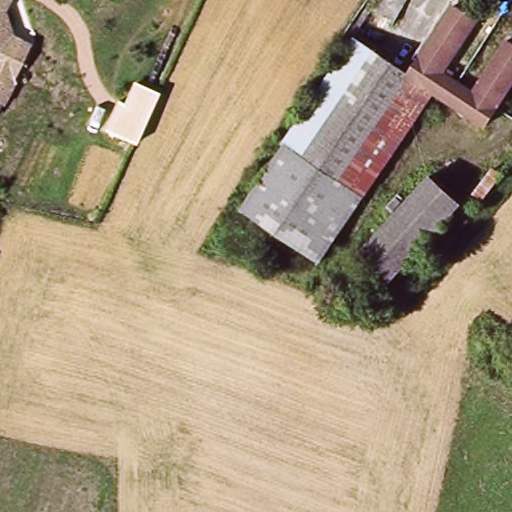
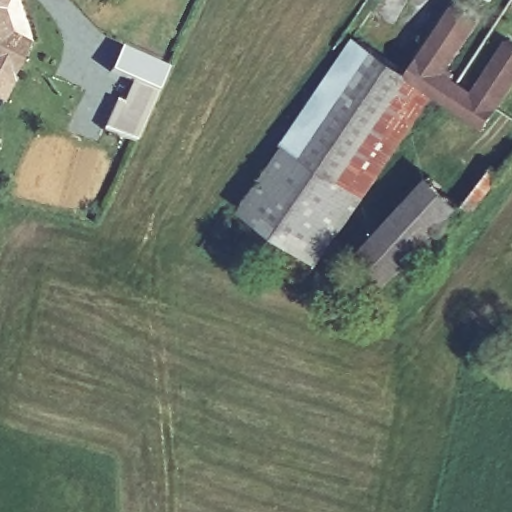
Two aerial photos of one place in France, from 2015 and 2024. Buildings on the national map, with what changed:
unchanged [(12,8),(0,34),(0,0),(16,0),(12,8)]
unchanged [(487,12),(452,63),(487,87),(512,51),(512,97),(494,121),(444,87),(412,65),(459,0),(468,0),(487,12)]
unchanged [(12,8),(19,34),(41,47),(11,104),(0,98),(0,34),(12,8)]
unchanged [(369,37),(412,65),(444,87),(322,262),(248,212),(369,37)]
new [(133,82),(110,71),(122,47),(168,69),(157,93),(133,82)]
unchanged [(122,105),(133,82),(157,93),(134,143),(104,129),(116,102),(122,105)]
unchanged [(502,164),(512,171),(512,181),(488,213),(476,204),(502,164)]
unchanged [(399,282),(368,255),(442,173),(472,201),(399,282)]

